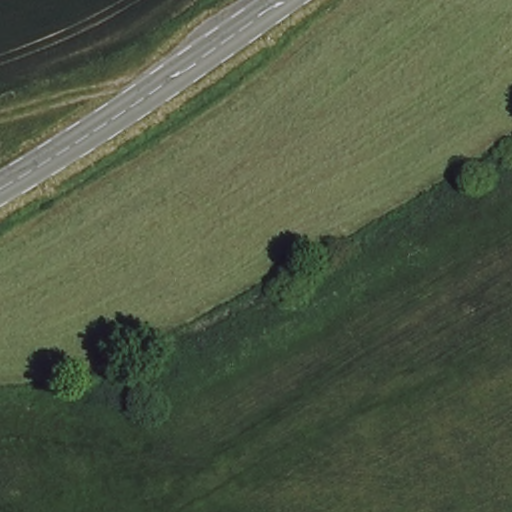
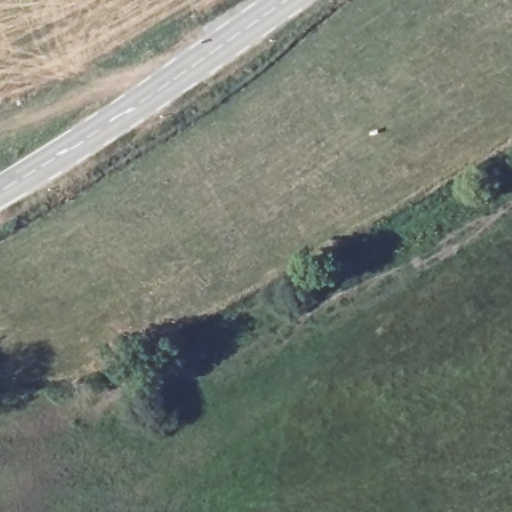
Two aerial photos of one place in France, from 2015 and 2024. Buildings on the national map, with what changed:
[]

